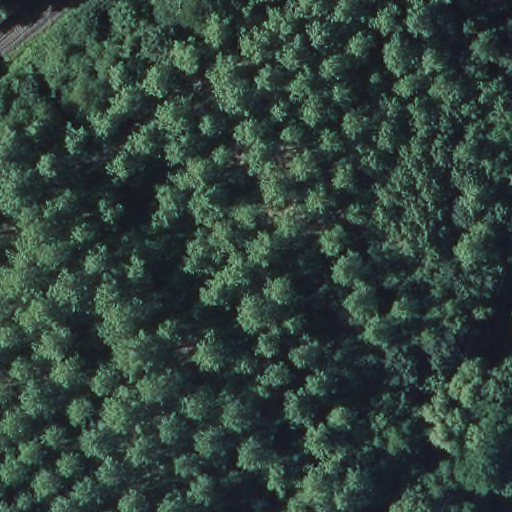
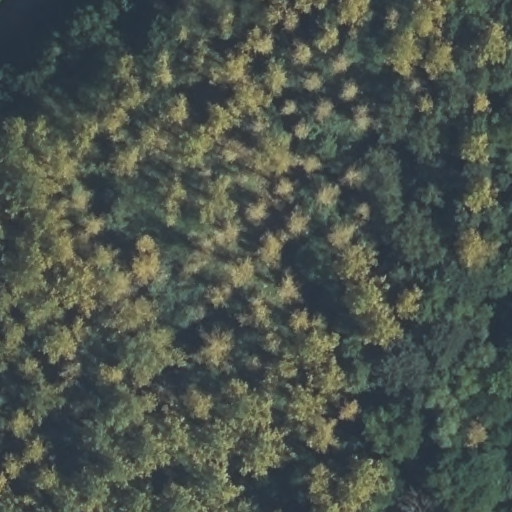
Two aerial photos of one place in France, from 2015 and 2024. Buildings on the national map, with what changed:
[]

